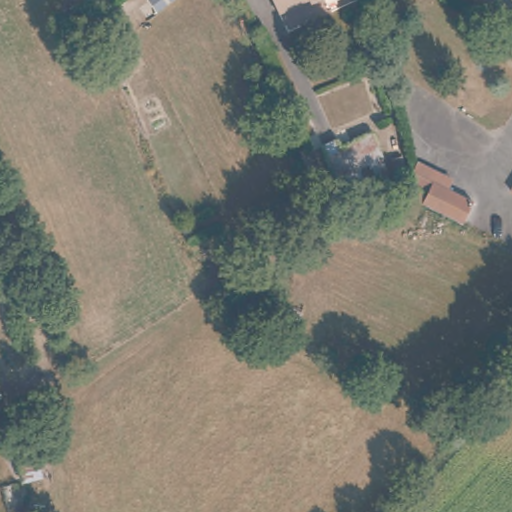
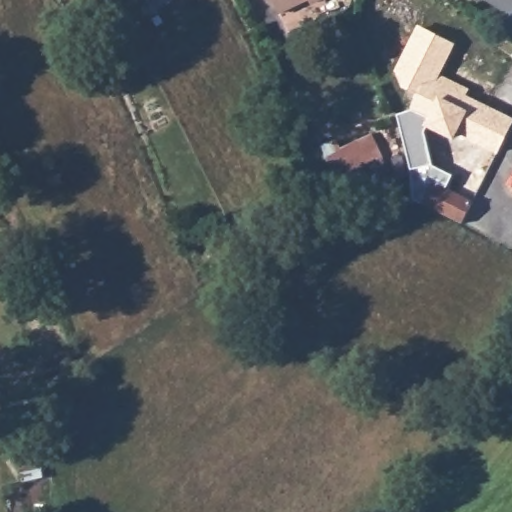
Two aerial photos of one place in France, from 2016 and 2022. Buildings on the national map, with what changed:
unchanged [(280,10),(276,0),(303,0),(280,10)]
new [(477,141),(455,131),(450,137),(425,125),(422,131),(429,164),(408,169),(394,113),(410,109),(417,94),(403,87),(395,70),(416,28),(450,45),(432,81),(491,111),(477,141)]
unchanged [(374,127),(385,162),(334,175),(322,142),(374,127)]
unchanged [(475,197),(460,223),(423,203),(431,177),(475,197)]
unchanged [(15,436),(40,434),(46,475),(20,478),(15,436)]

